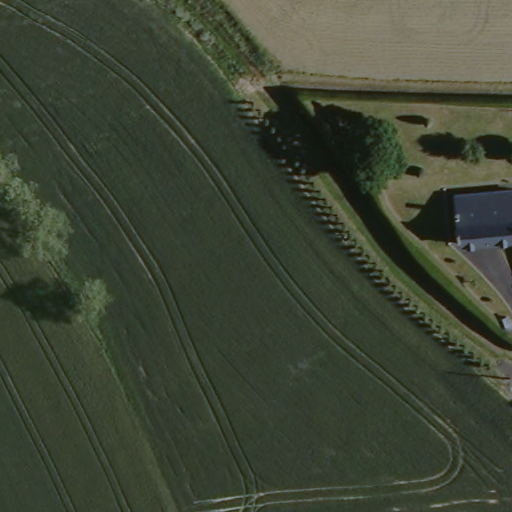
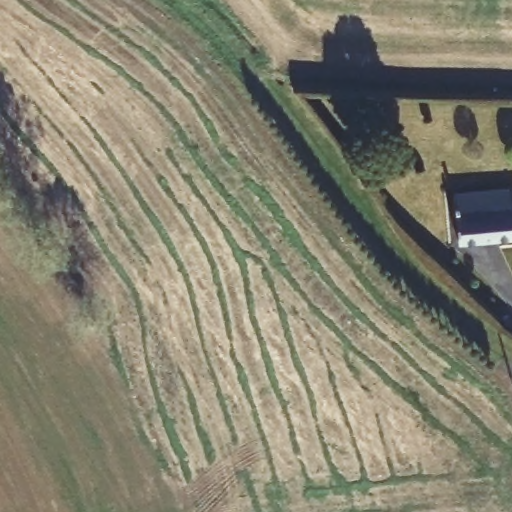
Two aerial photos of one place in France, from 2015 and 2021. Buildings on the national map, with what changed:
unchanged [(458,244),(454,194),(512,189),(512,240),(458,244)]
unchanged [(506,330),(503,328),(501,325),(501,320),(502,318),(504,316),(507,315),(512,316),(512,317),(512,328),(509,330),(506,330)]

